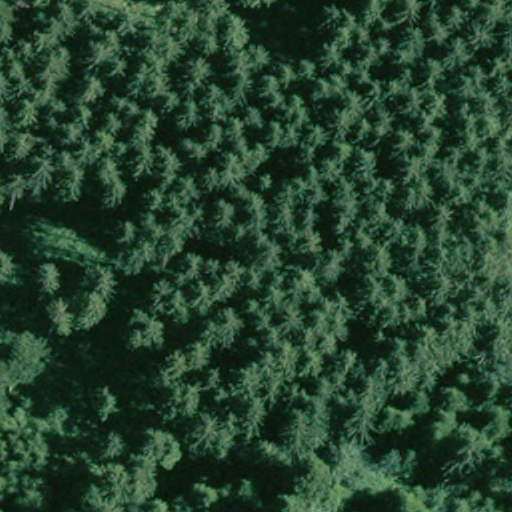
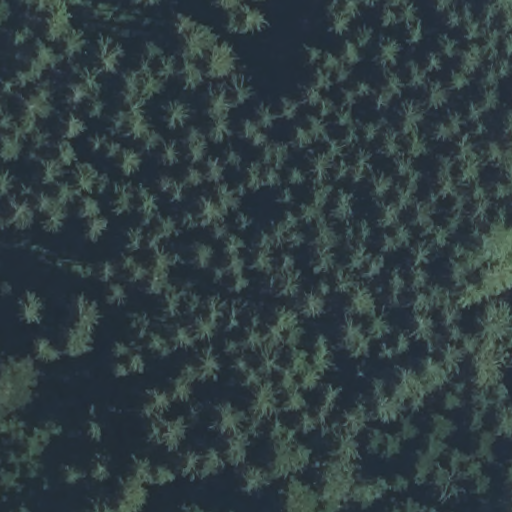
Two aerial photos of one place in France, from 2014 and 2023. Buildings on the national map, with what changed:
[]

